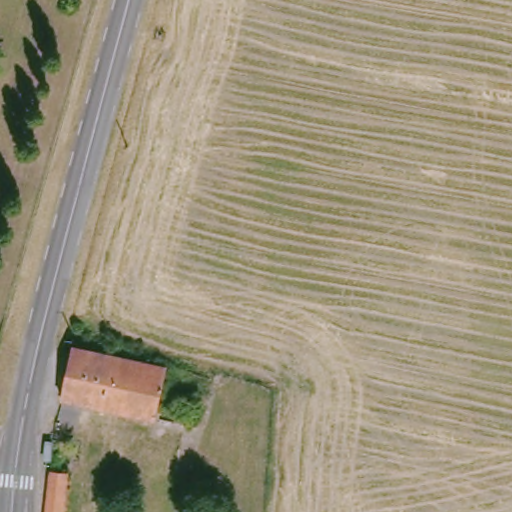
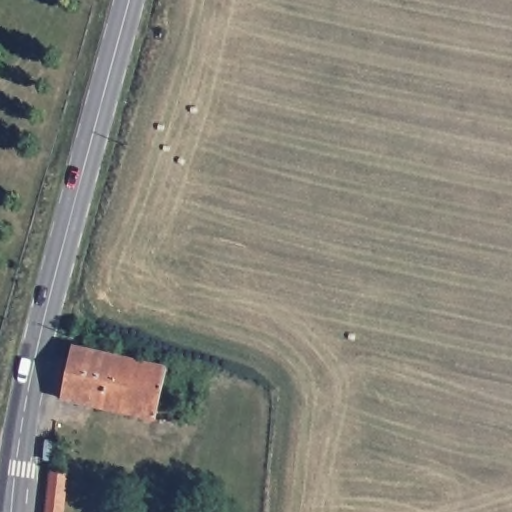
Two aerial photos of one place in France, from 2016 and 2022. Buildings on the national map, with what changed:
unchanged [(154,419),(60,400),(73,348),(165,371),(154,419)]
unchanged [(52,472),(67,474),(64,512),(47,512),(52,472)]

